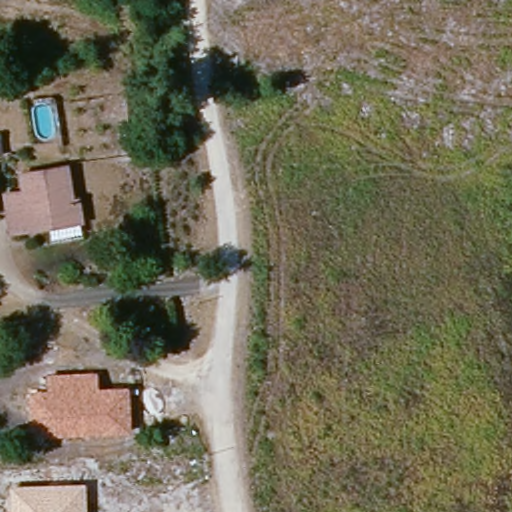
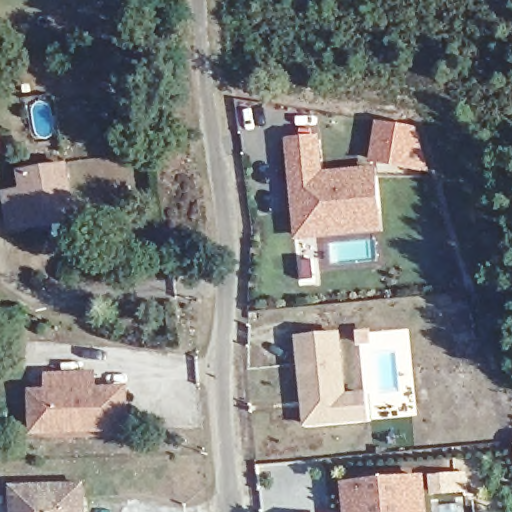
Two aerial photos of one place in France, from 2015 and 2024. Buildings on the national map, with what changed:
new [(370,163),(377,121),(417,128),(432,173),(370,163)]
new [(297,237),(287,140),(304,138),(322,136),(325,171),(378,166),(385,230),(297,237)]
unchanged [(21,189),(19,172),(65,167),(70,202),(75,202),(78,222),(7,233),(5,218),(1,191),(21,189)]
new [(342,332),(348,392),(368,390),(371,422),(305,429),(296,335),(342,332)]
unchanged [(130,386),(132,433),(32,437),(30,392),(47,391),(46,374),(98,372),(99,388),(130,386)]
new [(429,512),(345,512),(342,482),(425,473),(429,512)]
unchanged [(85,480),(86,512),(10,512),(9,485),(85,480)]

